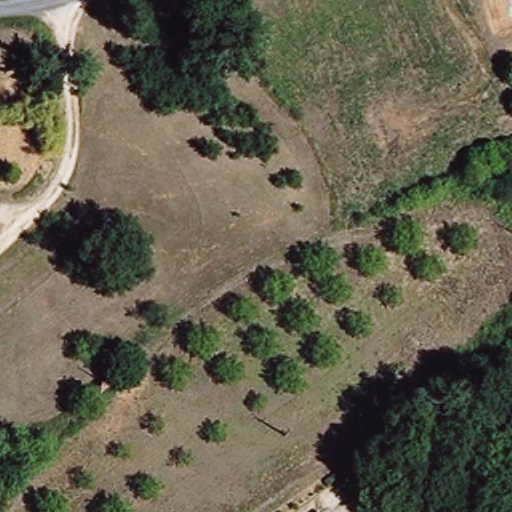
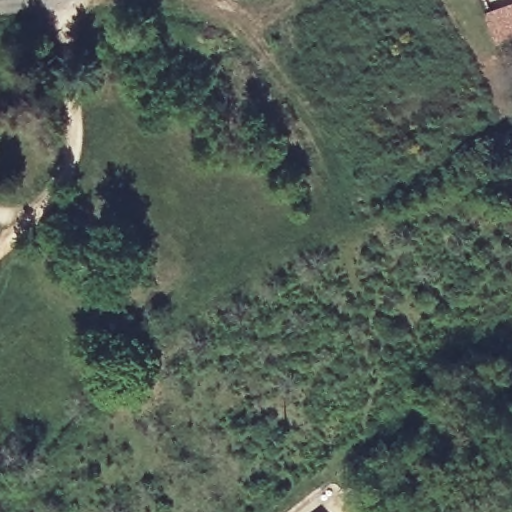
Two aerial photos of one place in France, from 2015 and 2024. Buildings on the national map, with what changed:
new [(496,45),(485,14),(512,3),(512,39),(496,45)]

